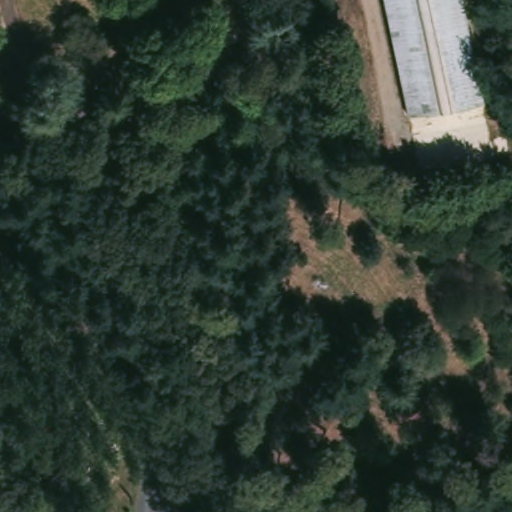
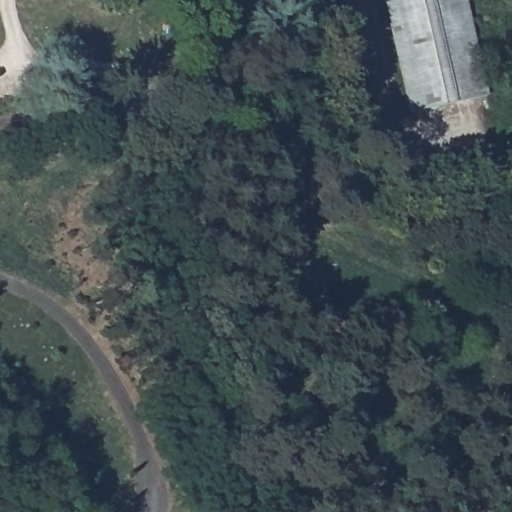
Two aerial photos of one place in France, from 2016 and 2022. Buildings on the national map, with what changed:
unchanged [(493,115),(414,130),(389,0),(470,0),(493,115)]

